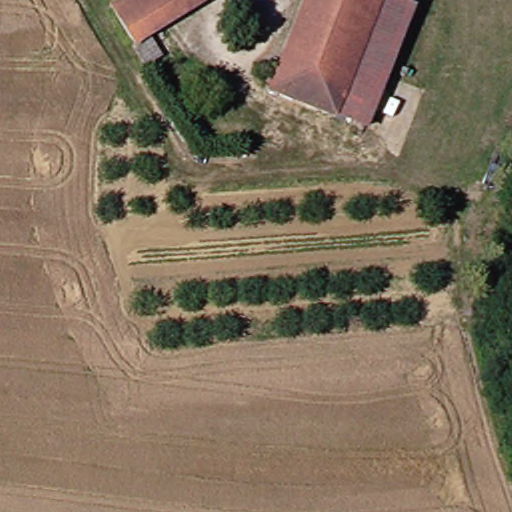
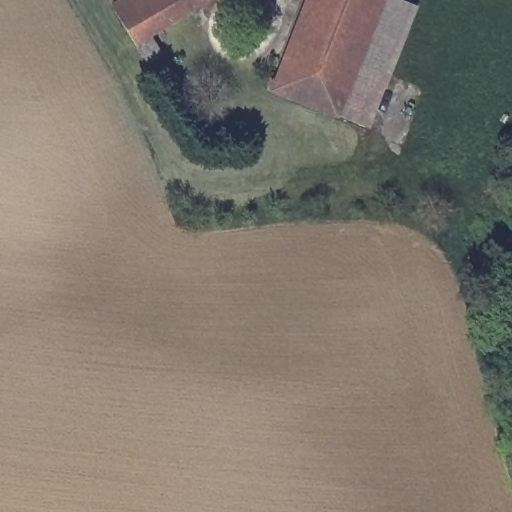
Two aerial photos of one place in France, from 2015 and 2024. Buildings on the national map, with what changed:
unchanged [(139,47),(112,11),(129,0),(207,0),(139,47)]
unchanged [(280,66),(305,0),(383,0),(349,91),(280,66)]
unchanged [(339,120),(349,91),(383,0),(390,0),(408,6),(417,10),(374,132),(363,129),(339,120)]
unchanged [(269,95),(280,66),(349,91),(339,120),(269,95)]

